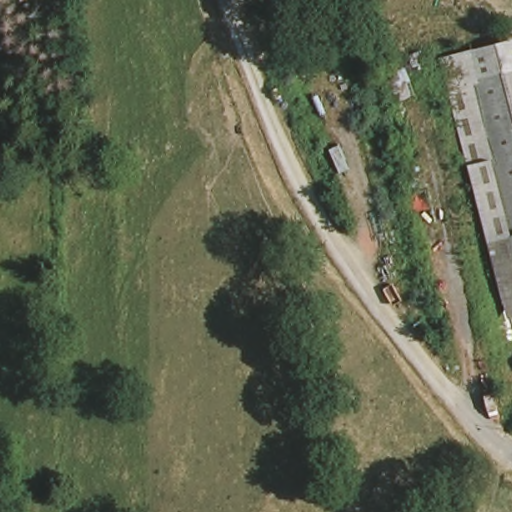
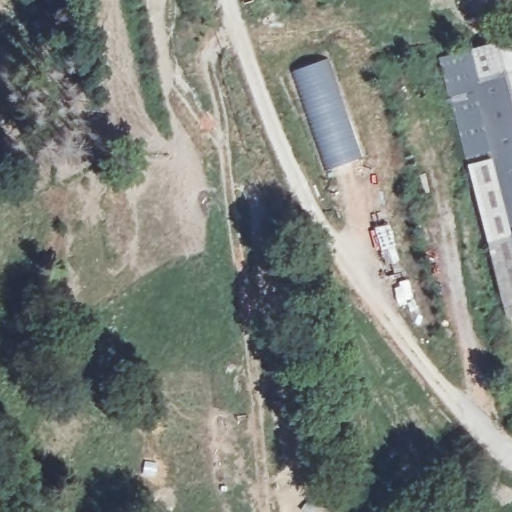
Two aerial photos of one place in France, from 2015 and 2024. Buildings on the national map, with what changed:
unchanged [(512,248),(512,283),(496,287),(441,54),(512,39),(512,69),(472,79),(512,248)]
new [(330,168),(294,70),(325,61),(359,158),(330,168)]
unchanged [(472,79),(512,69),(512,248),(472,79)]

